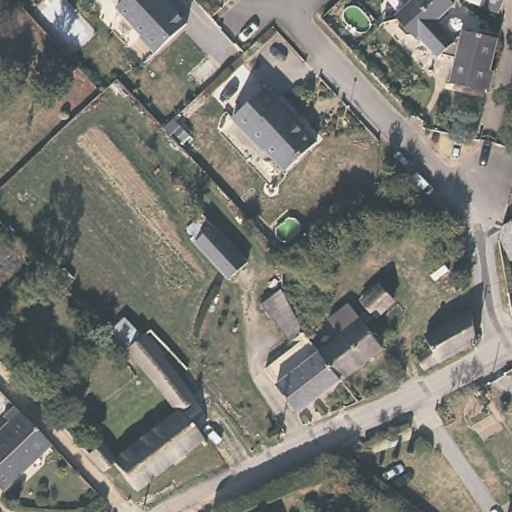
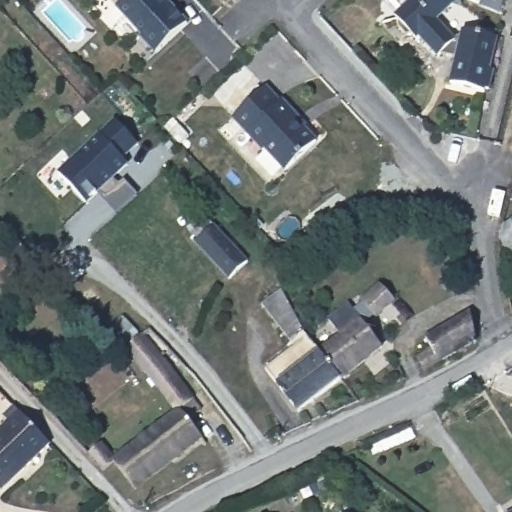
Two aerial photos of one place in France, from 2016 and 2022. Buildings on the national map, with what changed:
unchanged [(141,35),(143,33),(117,5),(123,0),(167,0),(187,22),(156,51),(141,35)]
unchanged [(446,6),(432,21),(450,39),(457,39),(463,31),(494,37),(488,60),(492,66),(487,87),(482,87),(480,91),(447,83),(452,60),(437,54),(434,58),(414,38),(411,41),(406,36),(396,37),(388,29),(389,17),(386,15),(402,0),(441,0),(446,6)]
unchanged [(285,102),(283,108),(300,126),(300,131),(315,148),(289,174),(269,153),(264,157),(232,120),(269,85),(285,102)]
new [(114,119),(140,146),(125,160),(130,165),(115,180),(119,185),(124,180),(139,195),(117,215),(99,196),(88,205),(57,173),(114,119)]
unchanged [(507,230),(508,220),(512,218),(512,242),(507,230)]
unchanged [(228,278),(206,255),(192,240),(207,225),(222,241),(244,263),(228,278)]
unchanged [(401,294),(382,311),(369,297),(388,280),(401,294)]
unchanged [(348,374),(305,406),(278,375),(269,365),(291,344),(258,306),(277,288),(310,326),(325,346),(348,374)]
unchanged [(325,346),(346,330),(334,314),(355,298),(368,314),(370,319),(390,342),(348,374),(325,346)]
unchanged [(477,305),(483,330),(430,357),(423,346),(437,339),(431,327),(476,302),(477,305)]
unchanged [(189,388),(175,401),(171,404),(124,349),(143,334),(189,388)]
unchanged [(197,398),(185,408),(205,435),(138,486),(114,458),(180,408),(175,401),(189,388),(197,398)]
unchanged [(4,488),(0,484),(0,426),(5,422),(1,417),(13,406),(49,444),(4,488)]
unchanged [(89,454),(100,444),(114,458),(102,468),(89,454)]

